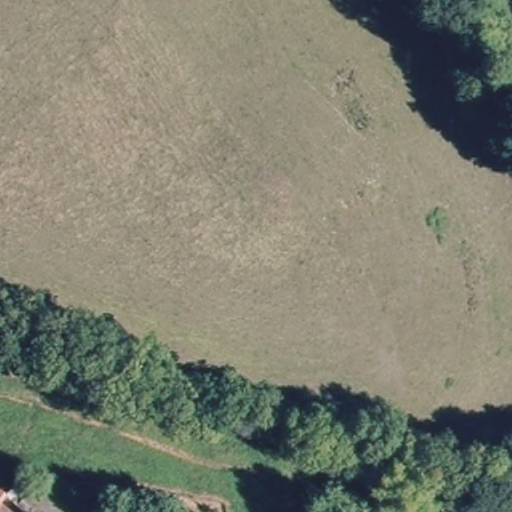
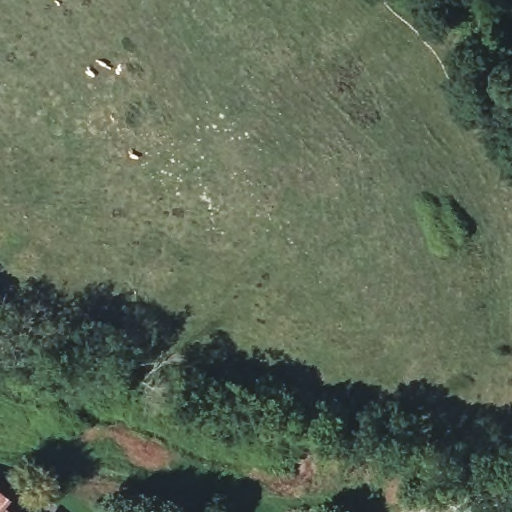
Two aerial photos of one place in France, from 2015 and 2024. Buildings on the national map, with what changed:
unchanged [(1,512),(0,512),(0,506),(4,509),(1,512)]
unchanged [(6,506),(11,512),(1,512),(4,509),(6,506)]

